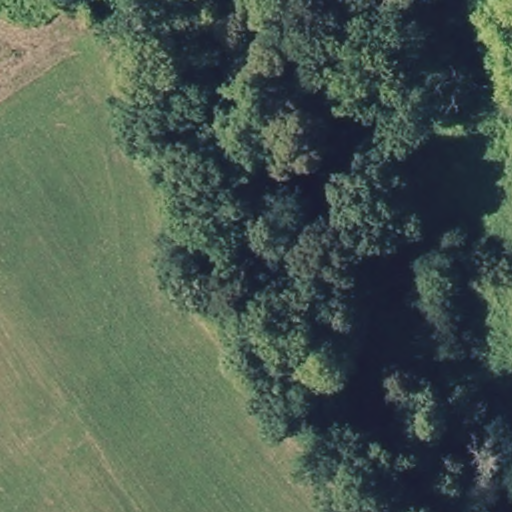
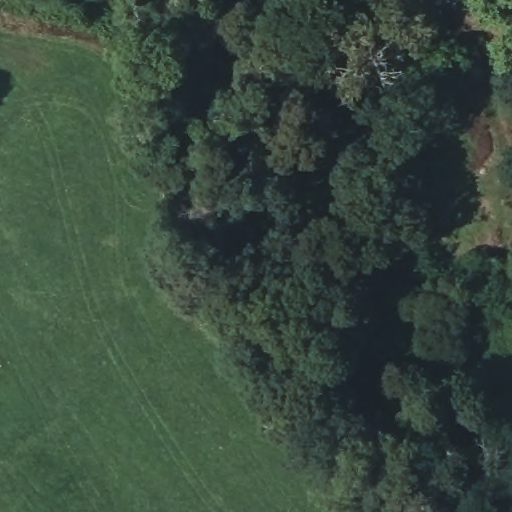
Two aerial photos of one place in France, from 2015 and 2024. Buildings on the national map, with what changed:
[]

